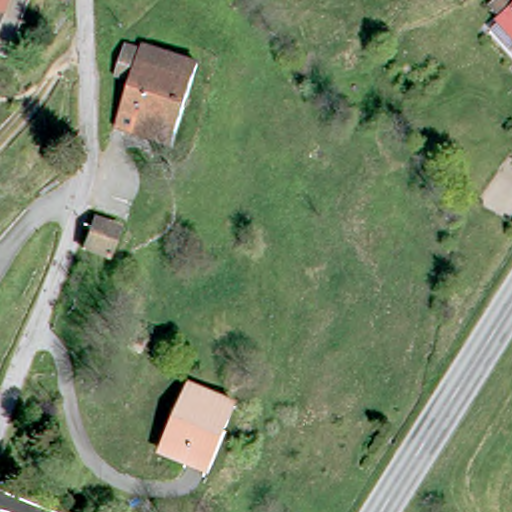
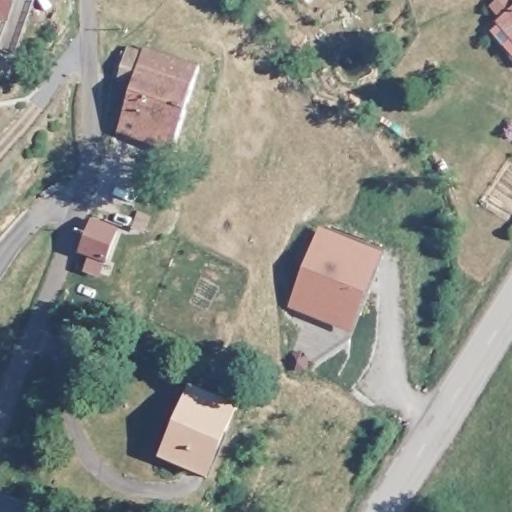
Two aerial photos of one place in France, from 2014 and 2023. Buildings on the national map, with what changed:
unchanged [(29,0),(10,55),(0,52),(0,0),(29,0)]
unchanged [(507,0),(512,0),(512,7),(506,1),(507,0)]
unchanged [(512,21),(512,41),(503,30),(512,21)]
unchanged [(134,86),(119,80),(131,48),(145,53),(146,51),(203,72),(177,150),(118,130),(134,86)]
unchanged [(133,155),(143,159),(136,177),(125,172),(133,155)]
unchanged [(108,265),(79,253),(90,221),(121,235),(108,265)]
new [(353,339),(293,316),(328,228),(386,250),(353,339)]
unchanged [(168,457),(174,443),(197,389),(241,409),(218,463),(213,477),(168,457)]

